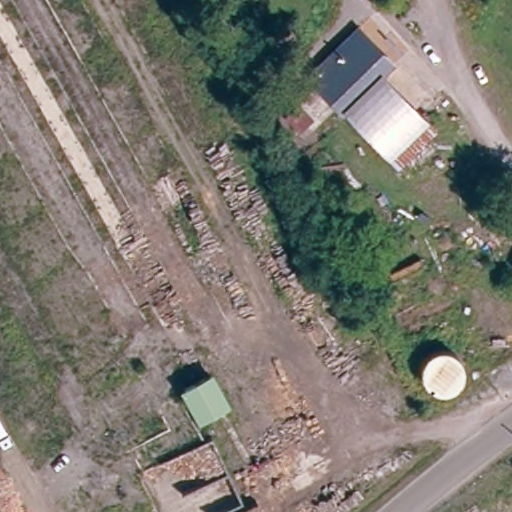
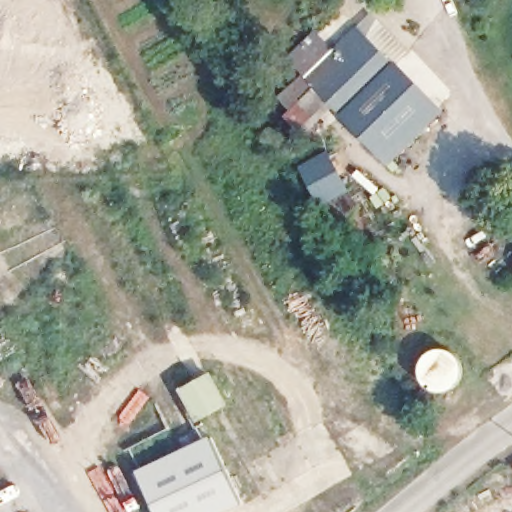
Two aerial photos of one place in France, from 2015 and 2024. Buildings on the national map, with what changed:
unchanged [(312,79),(363,26),(402,67),(389,82),(433,126),(395,169),(312,79)]
unchanged [(412,376),(412,370),(413,365),(416,361),(419,357),(425,355),(430,354),(437,354),(443,354),(448,357),(451,361),(454,366),(454,372),(454,379),(452,385),(449,390),(444,394),(439,396),(434,396),(428,394),(424,393),(419,391),(412,385),(412,376)]
unchanged [(185,425),(169,392),(202,376),(220,409),(185,425)]
new [(242,503),(222,512),(154,512),(134,470),(209,435),(242,503)]

